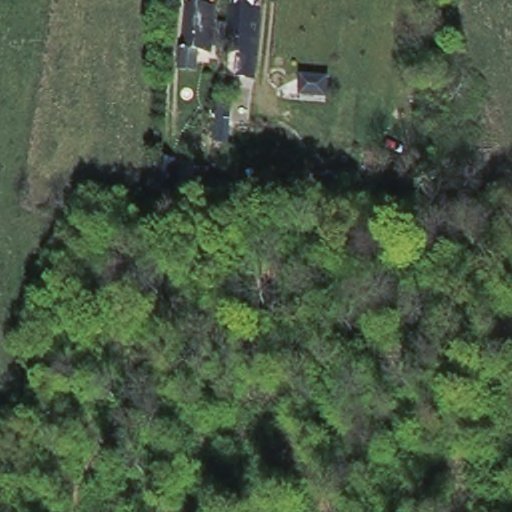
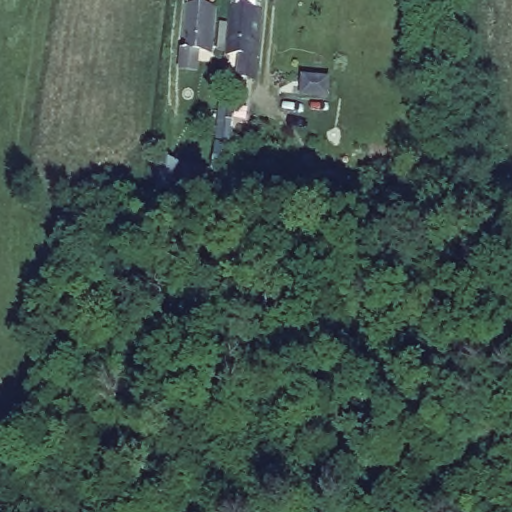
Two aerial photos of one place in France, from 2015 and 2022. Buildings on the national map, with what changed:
unchanged [(237,75),(239,55),(225,54),(231,6),(261,10),(254,56),(252,77),(237,75)]
unchanged [(209,58),(178,55),(183,7),(214,10),(209,58)]
unchanged [(176,165),(171,197),(154,195),(158,164),(176,165)]
unchanged [(207,174),(204,200),(190,199),(193,172),(207,174)]
unchanged [(226,205),(208,204),(210,189),(228,190),(226,205)]

